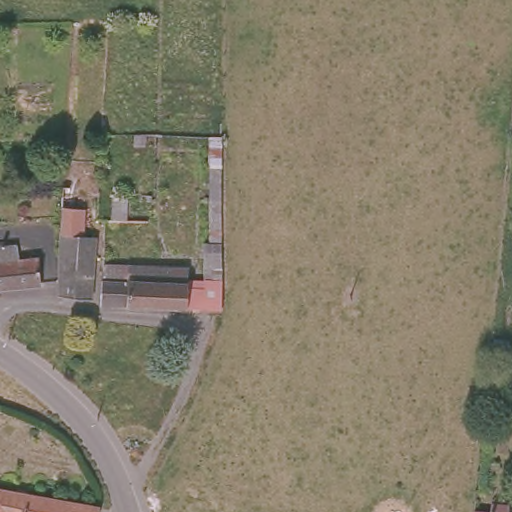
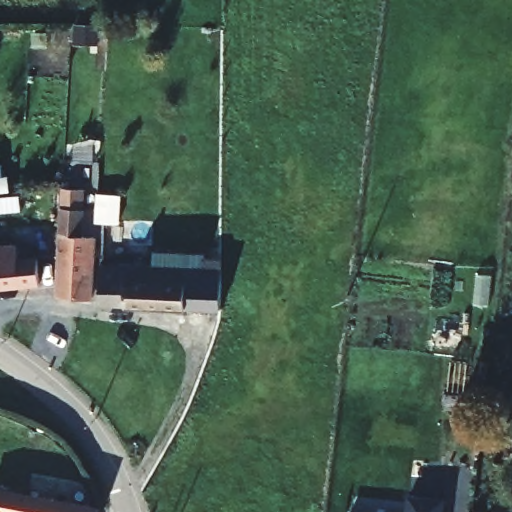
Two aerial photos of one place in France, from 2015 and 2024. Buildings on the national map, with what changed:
unchanged [(124,195),(124,219),(110,218),(111,194),(124,195)]
unchanged [(85,214),(82,241),(96,243),(90,305),(58,301),(63,212),(85,214)]
unchanged [(11,244),(12,259),(34,257),(36,283),(0,288),(0,245),(11,244)]
unchanged [(221,299),(221,315),(126,311),(101,310),(103,267),(185,271),(185,281),(202,281),(202,256),(218,259),(221,299)]
unchanged [(6,489),(99,510),(99,512),(0,512),(0,488),(6,489)]
new [(446,512),(407,512),(409,493),(448,497),(446,512)]
unchanged [(485,505),(502,506),(502,512),(484,512),(485,505)]
new [(349,511),(356,512),(349,512),(349,511)]
unchanged [(471,511),(478,512),(471,512),(471,511)]

